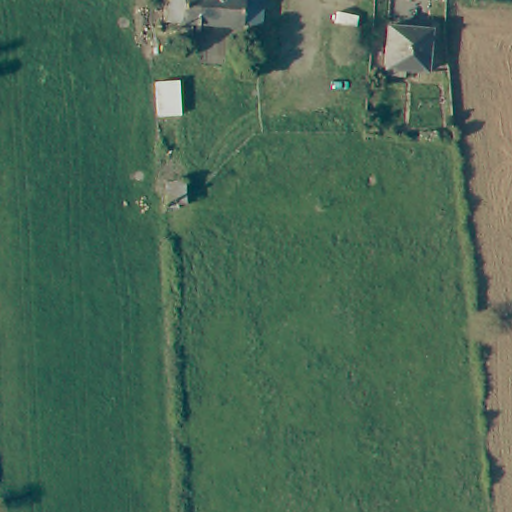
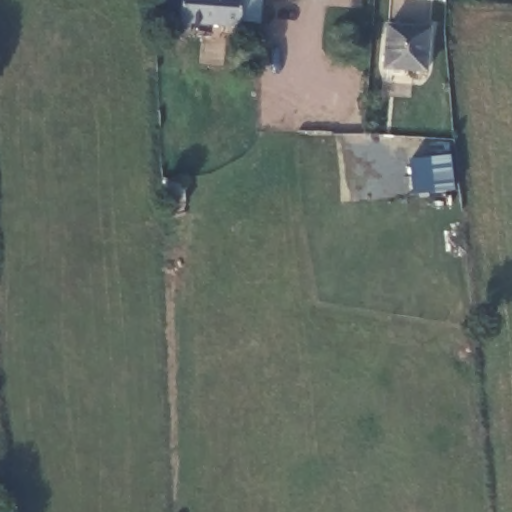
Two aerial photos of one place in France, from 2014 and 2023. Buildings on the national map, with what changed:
unchanged [(184,0),(259,0),(259,5),(277,5),(275,30),(256,29),(256,33),(182,29),(184,0)]
unchanged [(431,26),(428,67),(386,65),(387,24),(431,26)]
new [(407,159),(450,154),(456,190),(412,195),(407,159)]
unchanged [(183,176),(183,196),(169,196),(169,176),(183,176)]

